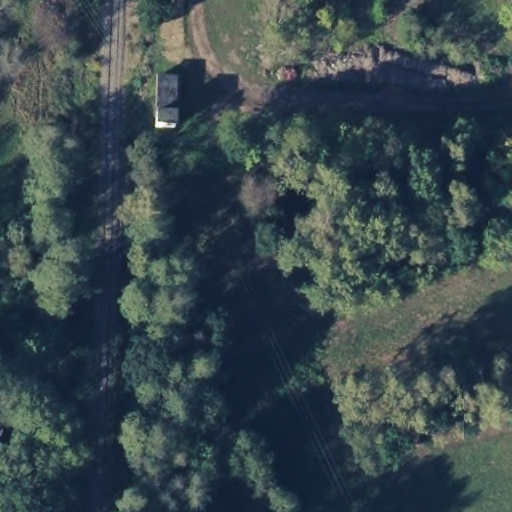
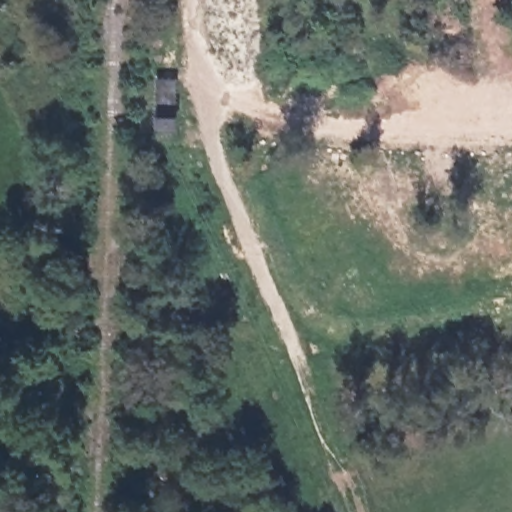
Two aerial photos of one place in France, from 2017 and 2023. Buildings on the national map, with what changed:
unchanged [(176,71),(174,107),(181,109),(179,134),(142,133),(154,71),(176,71)]

